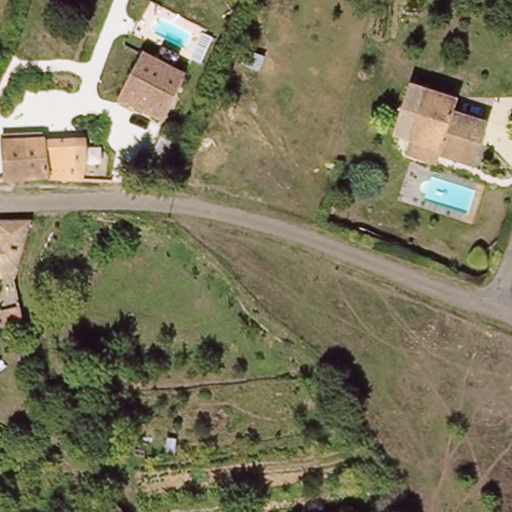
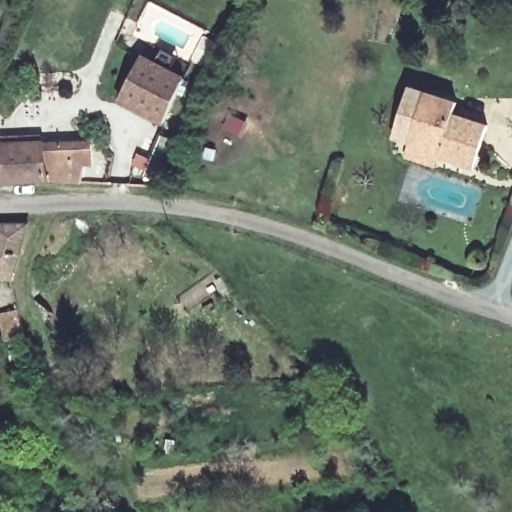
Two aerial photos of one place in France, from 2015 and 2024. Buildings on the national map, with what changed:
unchanged [(164,121),(119,100),(139,56),(184,77),(164,121)]
unchanged [(458,119),(492,130),(478,173),(443,162),(444,157),(401,143),(417,93),(462,107),(458,119)]
unchanged [(0,174),(0,142),(39,141),(40,147),(43,146),(43,150),(71,149),(81,148),(81,167),(76,187),(43,184),(1,187),(0,174)]
unchanged [(11,275),(9,284),(0,285),(0,229),(24,228),(11,275)]
unchanged [(28,336),(10,340),(4,313),(22,309),(28,336)]
unchanged [(109,497),(120,512),(106,512),(101,504),(109,497)]

